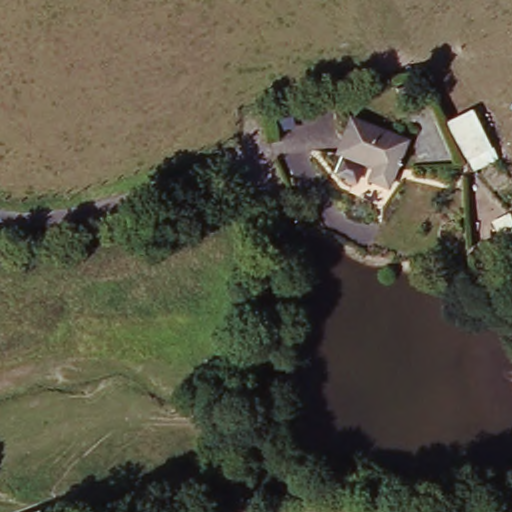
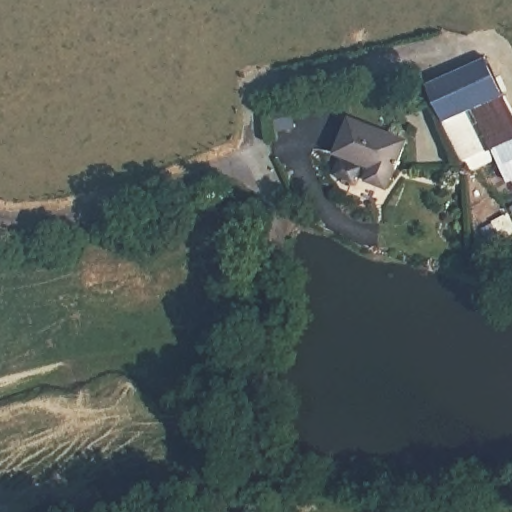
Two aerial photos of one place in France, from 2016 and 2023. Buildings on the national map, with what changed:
new [(492,150),(499,162),(472,175),(431,83),(487,59),(512,111),(512,141),(492,150)]
demolished [(461,147),(456,125),(484,119),(489,140),(461,147)]
unchanged [(370,184),(377,172),(341,154),(358,121),(411,147),(387,194),(370,184)]

